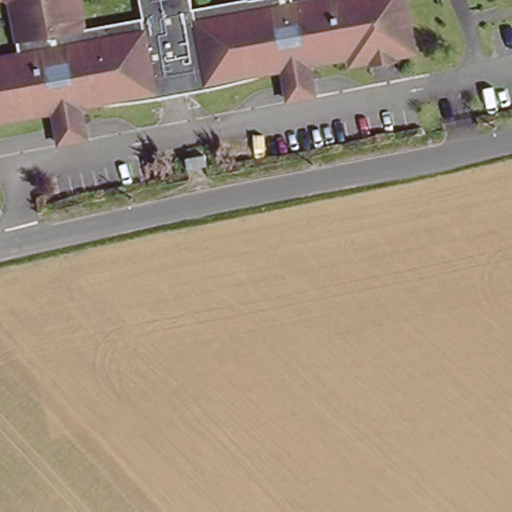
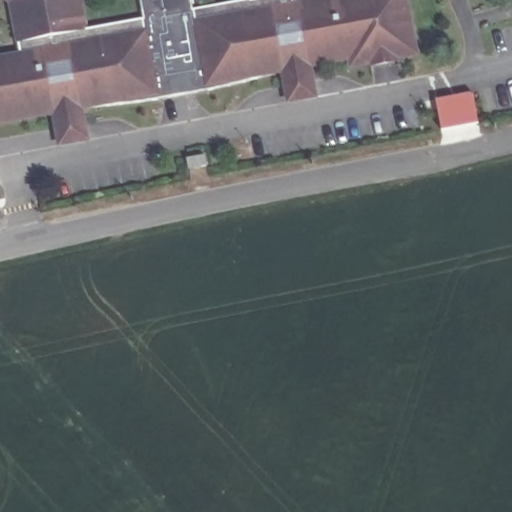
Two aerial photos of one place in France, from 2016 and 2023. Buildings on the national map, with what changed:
unchanged [(0,118),(0,52),(15,49),(6,0),(77,0),(82,24),(140,14),(138,0),(187,0),(188,6),(228,0),(289,0),(290,4),(310,0),(404,0),(414,55),(394,59),(394,61),(369,66),(368,63),(348,66),(347,59),(309,65),(314,97),(284,102),(278,70),(204,89),(203,83),(154,91),(155,96),(80,104),(85,136),(55,142),(49,109),(0,118)]
new [(472,99),(477,121),(441,130),(436,108),(472,99)]

